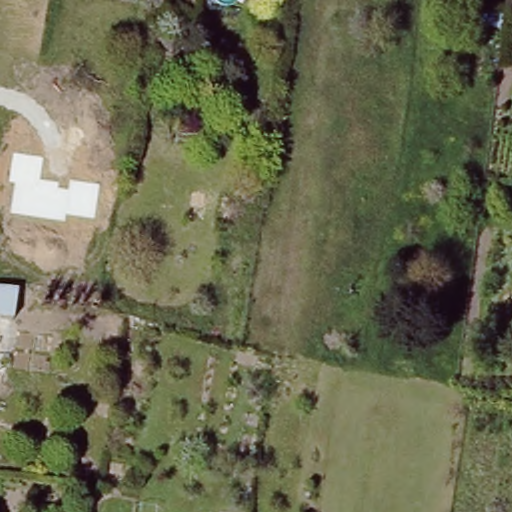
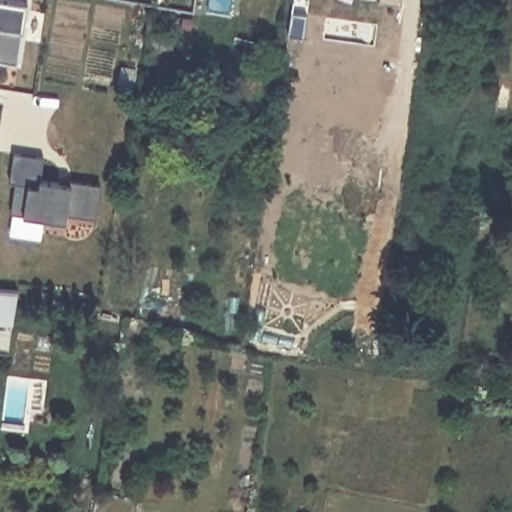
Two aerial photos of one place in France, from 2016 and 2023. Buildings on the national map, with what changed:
new [(16,64),(0,61),(0,0),(3,0),(25,4),(16,64)]
new [(383,0),(398,0),(398,2),(383,0)]
unchanged [(502,35),(469,30),(471,13),(500,15),(502,35)]
new [(12,152),(42,157),(37,185),(66,190),(68,180),(97,185),(92,219),(64,215),(63,221),(8,212),(13,182),(7,181),(12,152)]
new [(11,320),(0,319),(0,288),(16,290),(11,320)]

